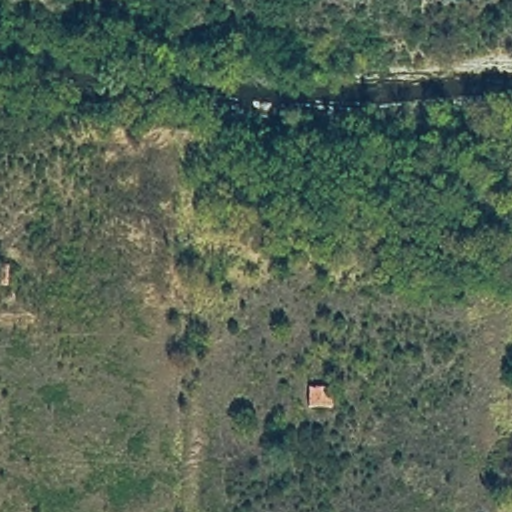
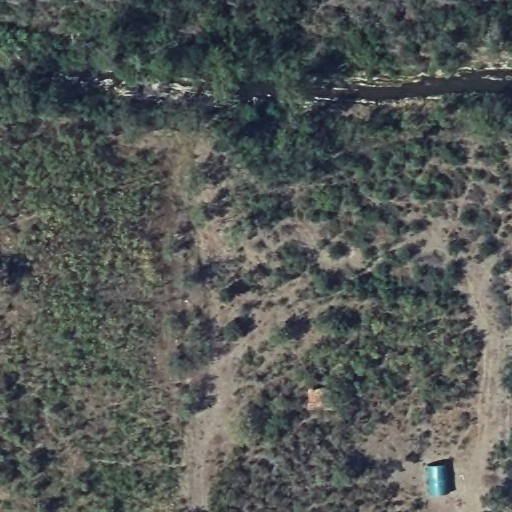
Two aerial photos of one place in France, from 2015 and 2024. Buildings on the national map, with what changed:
unchanged [(332,386),(333,407),(309,406),(307,383),(332,386)]

